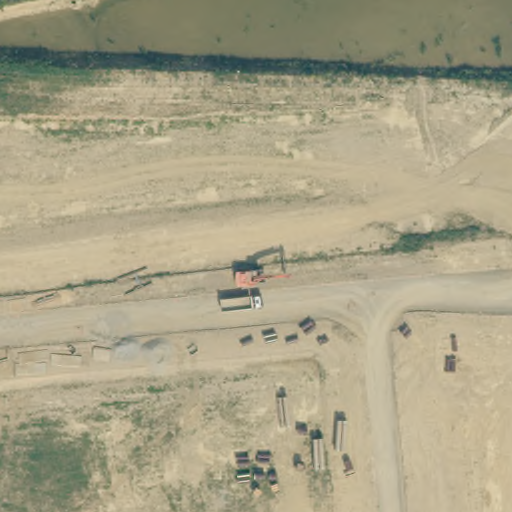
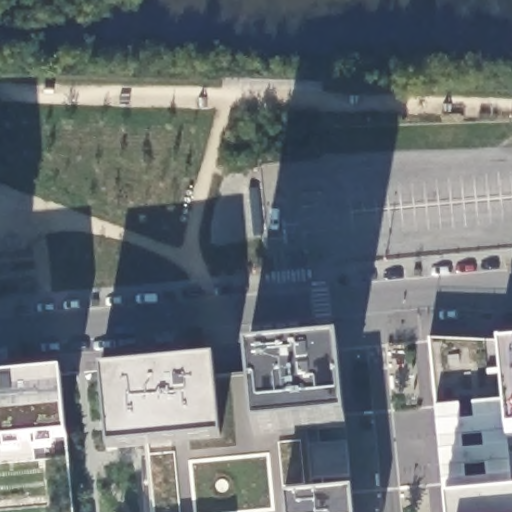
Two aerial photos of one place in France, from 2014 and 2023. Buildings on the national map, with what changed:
new [(499,355),(507,442),(512,441),(512,512),(445,512),(444,500),(435,411),(429,342),(496,342),(499,355)]
new [(346,427),(254,437),(248,376),(247,357),(337,348),(346,427)]
new [(512,354),(512,441),(507,442),(499,355),(512,354)]
new [(215,381),(219,440),(148,447),(105,451),(96,371),(213,361),(215,381)]
new [(74,512),(0,512),(0,380),(61,376),(67,439),(74,512)]
new [(219,440),(215,381),(248,376),(254,437),(346,427),(351,493),(284,499),(285,512),(154,512),(148,447),(219,440)]
new [(351,493),(353,512),(285,512),(284,499),(351,493)]

